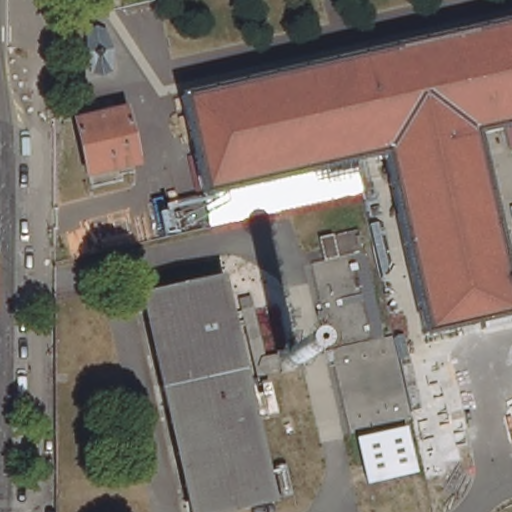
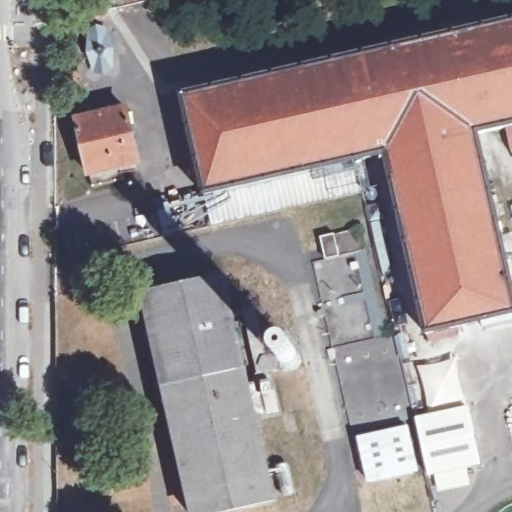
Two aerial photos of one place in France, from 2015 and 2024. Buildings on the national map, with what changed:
unchanged [(505,128),(477,133),(512,285),(512,317),(425,338),(383,155),(206,197),(182,101),(512,22),(512,151),(505,128)]
new [(107,24),(118,76),(100,80),(89,28),(107,24)]
unchanged [(91,175),(90,175),(87,162),(77,120),(127,108),(132,134),(134,138),(140,163),(122,167),(124,180),(94,187),(91,175)]
unchanged [(335,235),(340,258),(327,261),(322,238),(335,235)]
unchanged [(242,373),(239,374),(247,408),(265,493),(269,492),(270,495),(193,512),(188,512),(188,511),(192,510),(165,391),(162,392),(160,387),(164,386),(162,381),(144,296),(140,297),(140,294),(220,276),(221,278),(217,279),(237,369),(242,368),(242,373)]
unchanged [(300,357),(300,362),(299,367),(295,371),(290,372),(283,373),(282,370),(270,372),(275,392),(263,396),(254,352),(244,308),(255,306),(267,357),(279,354),(278,352),(289,349),(290,352),(294,352),(300,357)]
new [(467,405),(481,466),(466,469),(470,484),(437,491),(434,476),(427,477),(414,417),(467,405)]
unchanged [(362,488),(351,437),(407,426),(419,473),(362,488)]

